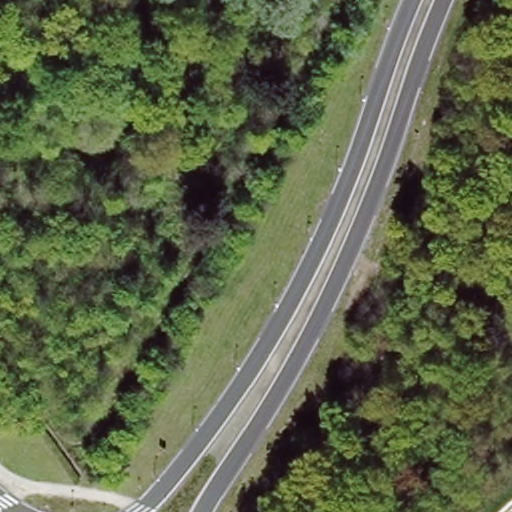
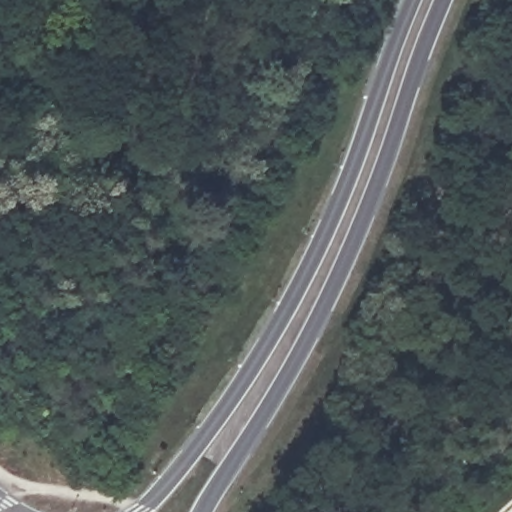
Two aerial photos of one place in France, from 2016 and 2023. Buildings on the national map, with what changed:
[]

